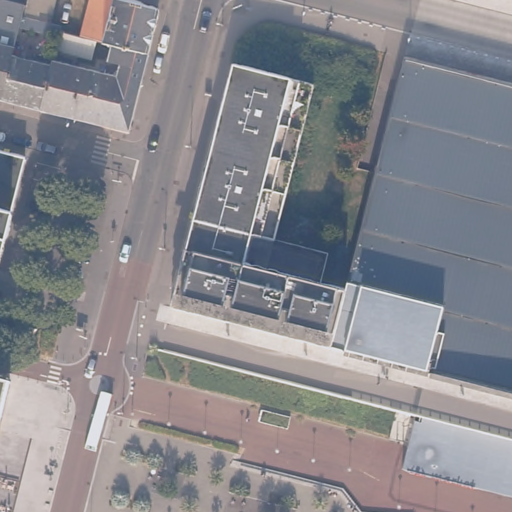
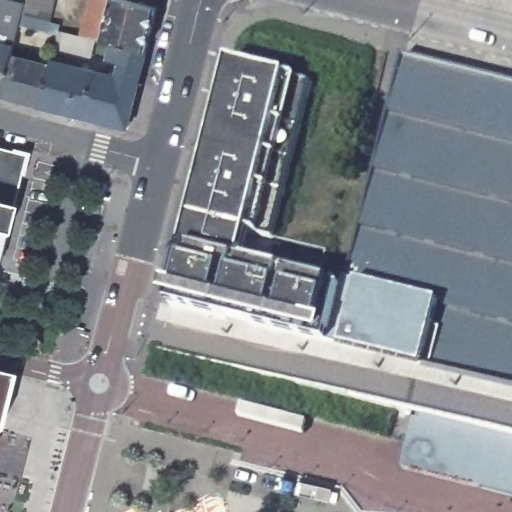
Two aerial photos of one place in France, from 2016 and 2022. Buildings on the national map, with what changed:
unchanged [(0,97),(0,0),(14,0),(24,2),(22,14),(11,56),(0,97)]
unchanged [(27,0),(54,0),(49,21),(23,15),(27,0)]
unchanged [(39,107),(50,65),(51,60),(103,73),(116,76),(120,62),(107,58),(111,43),(95,39),(92,52),(55,43),(59,30),(82,35),(91,0),(124,0),(157,8),(146,51),(138,81),(130,115),(126,129),(111,125),(39,107)]
unchanged [(364,231),(372,198),(411,49),(512,76),(512,387),(437,368),(432,367),(349,346),(336,342),(350,285),(364,231)]
unchanged [(0,97),(11,56),(50,65),(39,107),(0,97)]
unchanged [(327,280),(350,285),(336,342),(176,301),(185,264),(210,164),(237,59),(318,79),(293,178),(279,233),(333,247),(325,279),(327,280)]
unchanged [(25,157),(4,240),(0,239),(0,151),(25,157)]
unchanged [(14,381),(12,381),(0,429),(0,376),(15,380),(14,381)]

